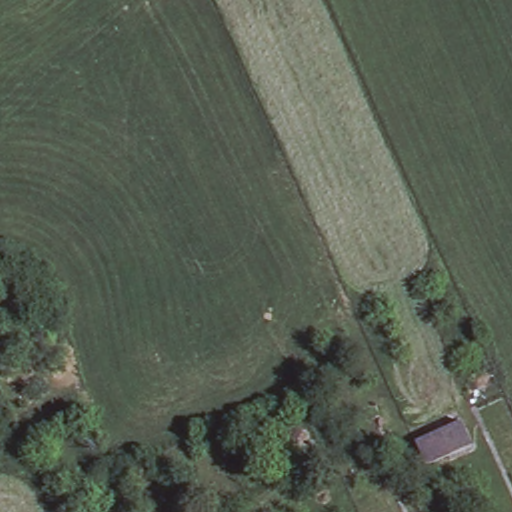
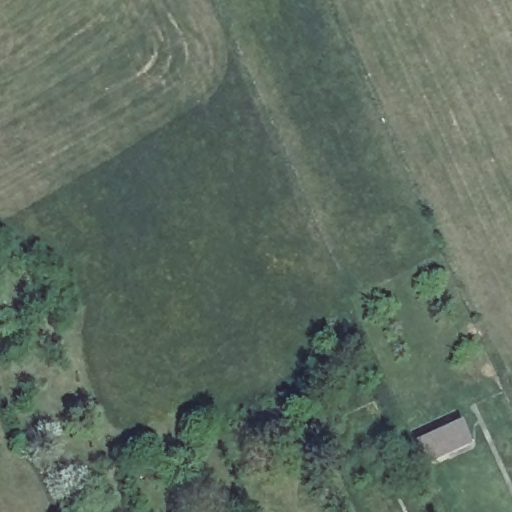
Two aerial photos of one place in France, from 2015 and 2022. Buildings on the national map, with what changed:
unchanged [(417,442),(462,422),(474,447),(429,467),(417,442)]

